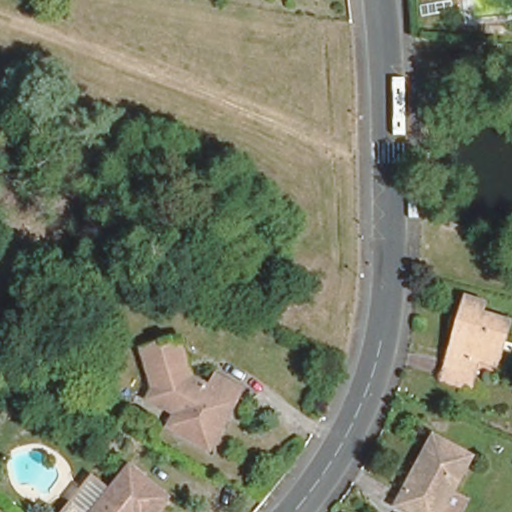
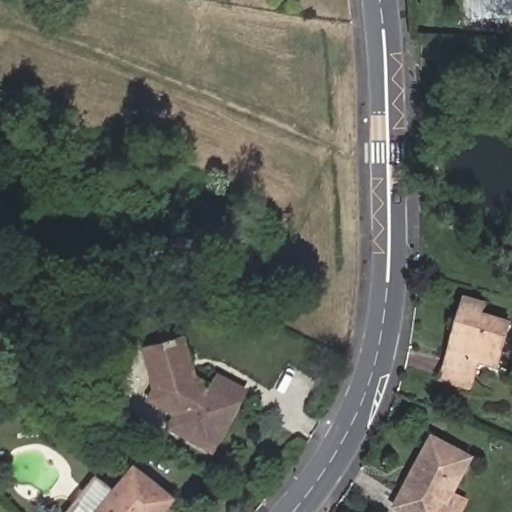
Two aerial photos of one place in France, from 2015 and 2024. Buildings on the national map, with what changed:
unchanged [(437,373),(441,361),(460,295),(483,301),(481,311),(508,319),(503,338),(496,364),(482,360),(474,358),(470,369),(466,382),(437,373)]
unchanged [(166,432),(174,418),(147,402),(149,398),(137,350),(177,339),(188,381),(205,391),(214,373),(247,391),(238,409),(212,456),(166,432)]
unchanged [(460,512),(408,512),(395,504),(436,435),(474,457),(454,491),(467,498),(460,512)]
unchanged [(89,471),(115,489),(127,473),(169,501),(162,512),(61,512),(89,471)]

